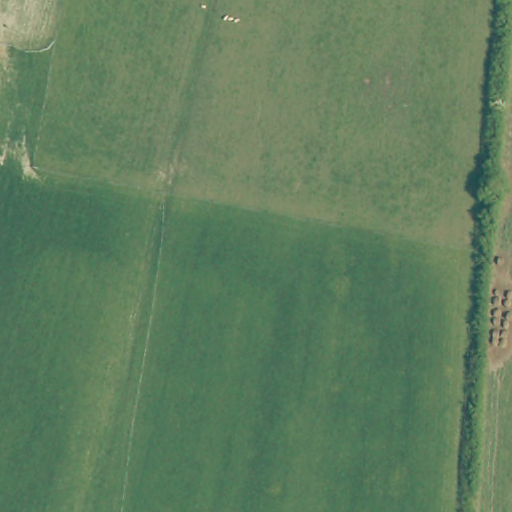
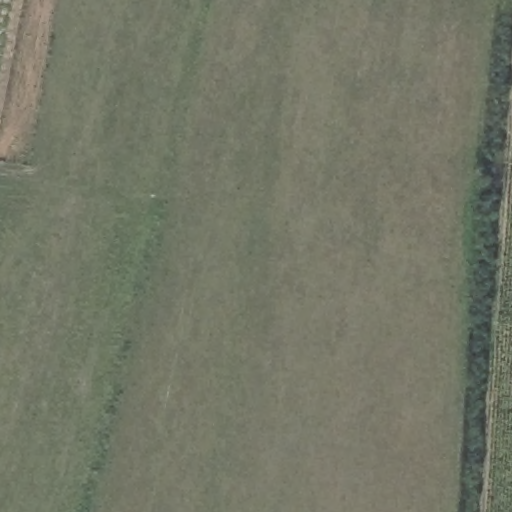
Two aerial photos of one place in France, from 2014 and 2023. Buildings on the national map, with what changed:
[]

